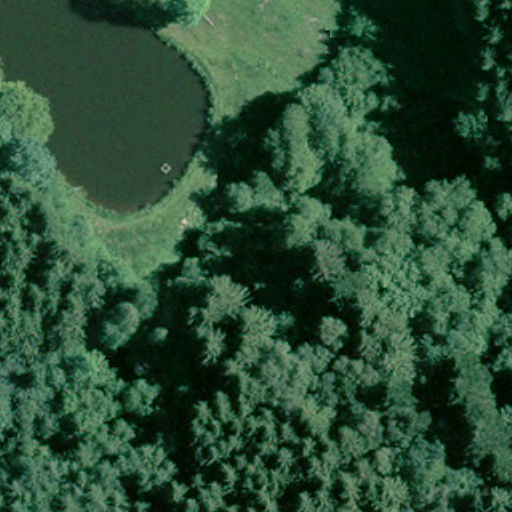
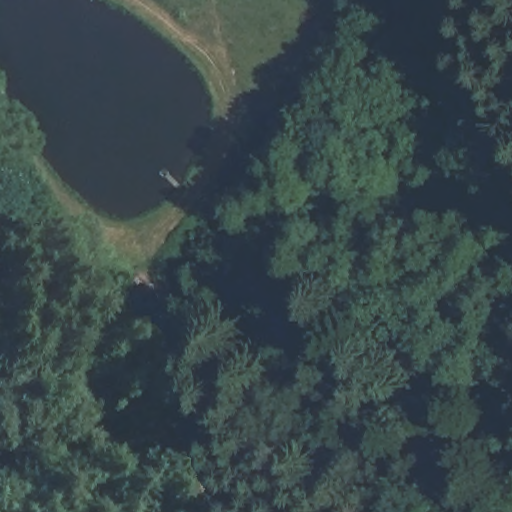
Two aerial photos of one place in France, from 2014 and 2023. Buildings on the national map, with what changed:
unchanged [(5,80),(0,84),(0,72),(5,80)]

